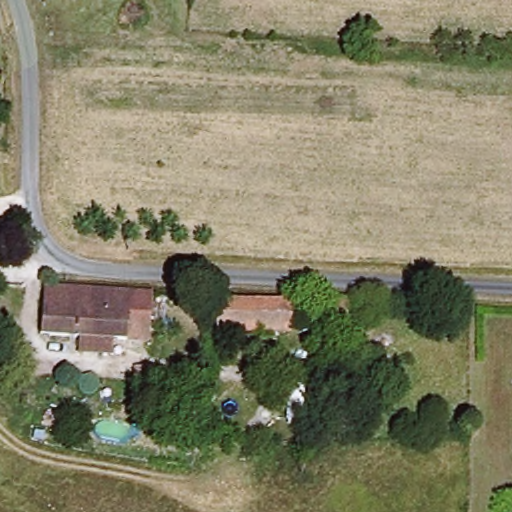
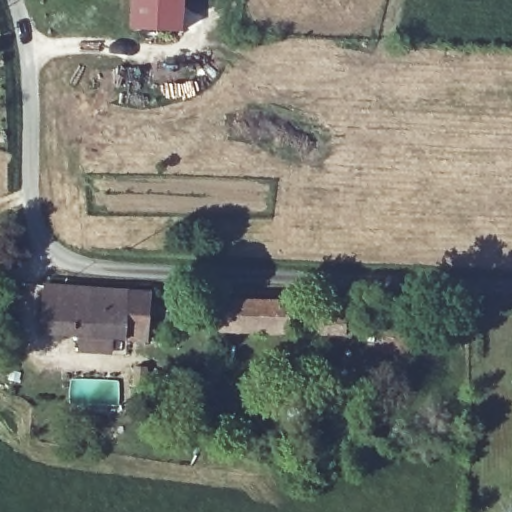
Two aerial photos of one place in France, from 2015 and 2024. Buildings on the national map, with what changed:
new [(183,31),(131,28),(132,0),(184,0),(183,31)]
unchanged [(129,342),(44,336),(47,289),(154,295),(152,317),(149,343),(129,342)]
unchanged [(290,333),(217,330),(219,298),(291,302),(290,333)]
unchanged [(360,313),(347,313),(346,338),(322,337),(323,302),(361,302),(360,313)]

